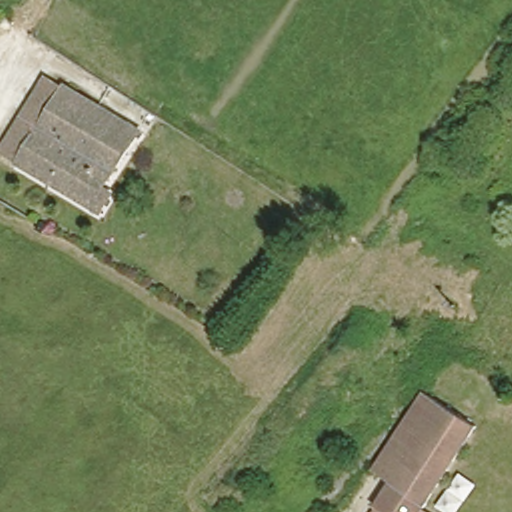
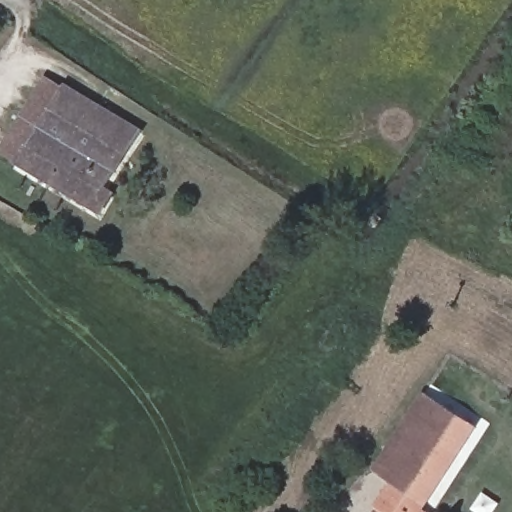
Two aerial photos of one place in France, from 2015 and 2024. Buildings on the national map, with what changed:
unchanged [(52,76),(69,87),(22,164),(4,154),(52,76)]
unchanged [(22,164),(69,87),(143,129),(100,191),(89,205),(77,199),(22,164)]
unchanged [(50,236),(40,229),(42,225),(44,223),(48,222),(52,224),(54,227),(55,230),(54,233),(50,236)]
unchanged [(382,500),(380,499),(393,479),(376,468),(426,389),(477,424),(427,501),(436,505),(432,512),(375,512),(382,500)]

